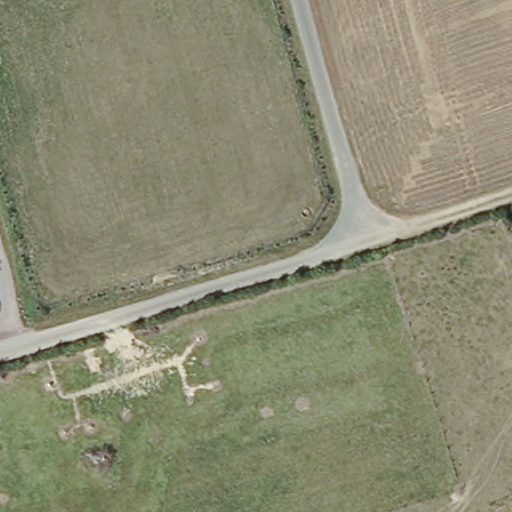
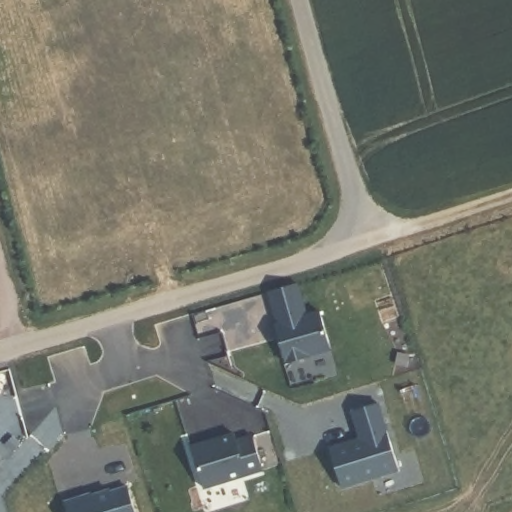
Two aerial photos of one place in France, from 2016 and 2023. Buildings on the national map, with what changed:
new [(295,285),(304,317),(318,313),(330,350),(307,357),(308,359),(286,366),(273,328),(276,326),(267,295),(295,285)]
new [(328,451),(357,443),(349,414),(378,404),(397,473),(339,491),(328,451)]
new [(190,451),(233,437),(235,445),(251,440),(261,472),(202,490),(190,451)]

